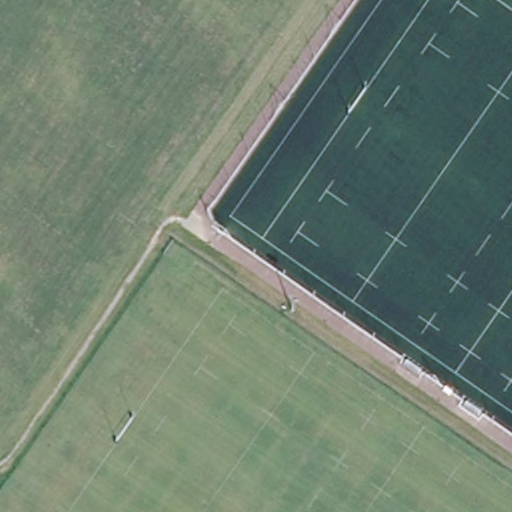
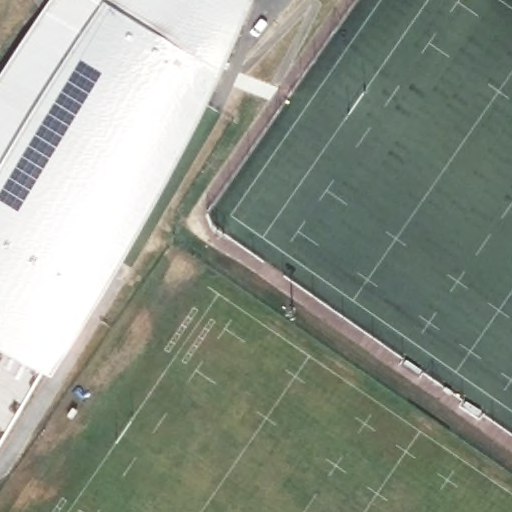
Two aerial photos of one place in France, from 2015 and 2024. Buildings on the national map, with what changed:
new [(203,111),(182,152),(122,259),(52,375),(0,346),(0,74),(48,0),(254,0),(203,111)]

